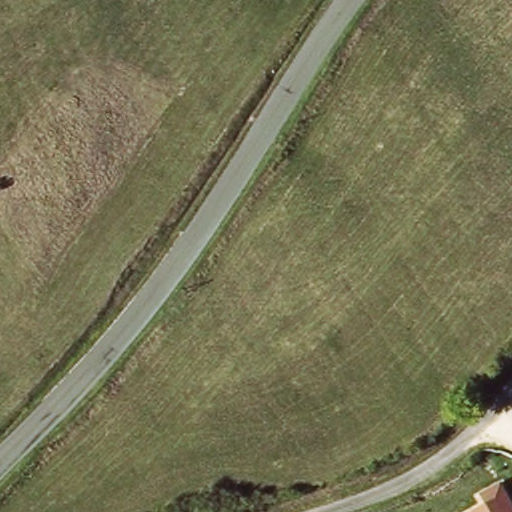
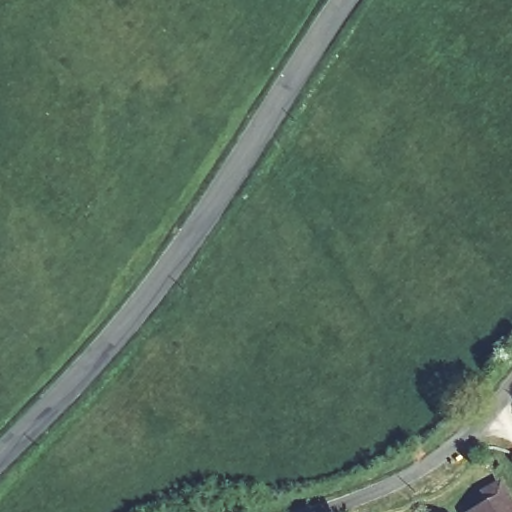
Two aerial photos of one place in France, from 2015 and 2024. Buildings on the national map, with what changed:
unchanged [(473,512),(472,510),(492,499),(487,490),(506,480),(512,492),(512,512),(473,512)]

